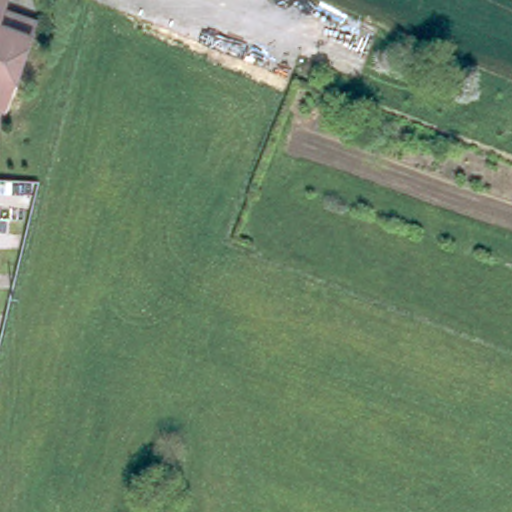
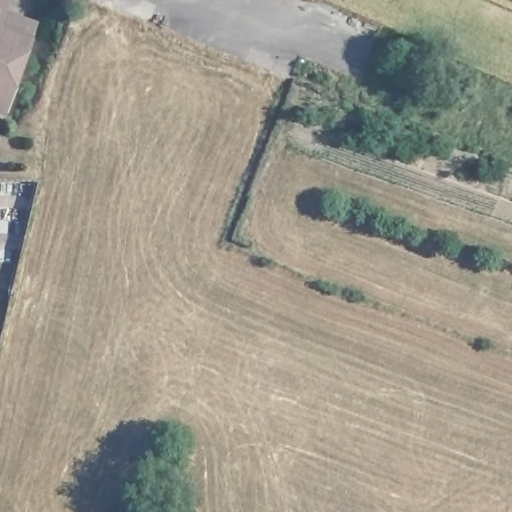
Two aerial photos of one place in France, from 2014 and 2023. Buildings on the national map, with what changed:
unchanged [(35,30),(30,44),(3,115),(0,113),(0,0),(9,0),(2,19),(35,30)]

